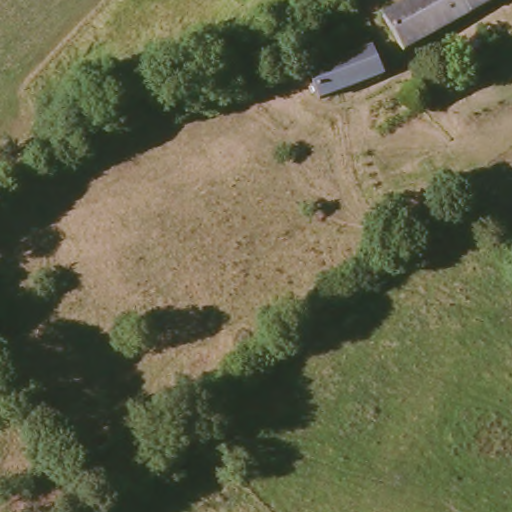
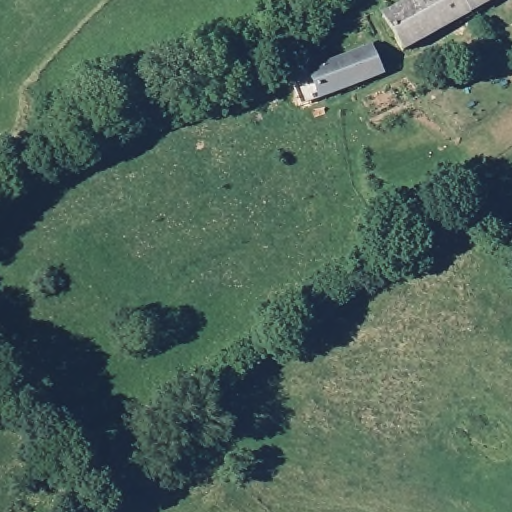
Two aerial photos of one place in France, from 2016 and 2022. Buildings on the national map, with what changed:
unchanged [(404,54),(403,53),(384,18),(416,0),(499,0),(501,3),(404,54)]
unchanged [(319,100),(308,71),(371,46),(382,75),(319,100)]

